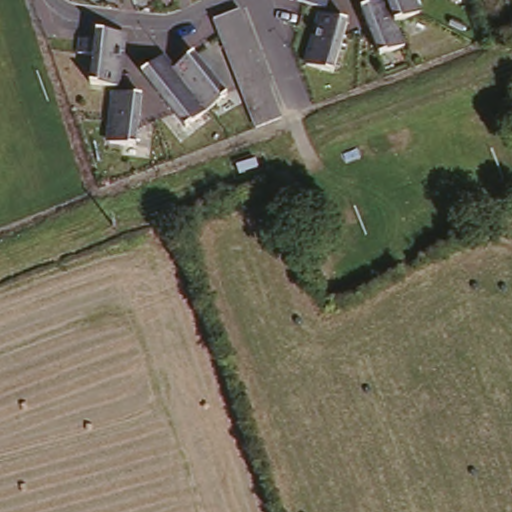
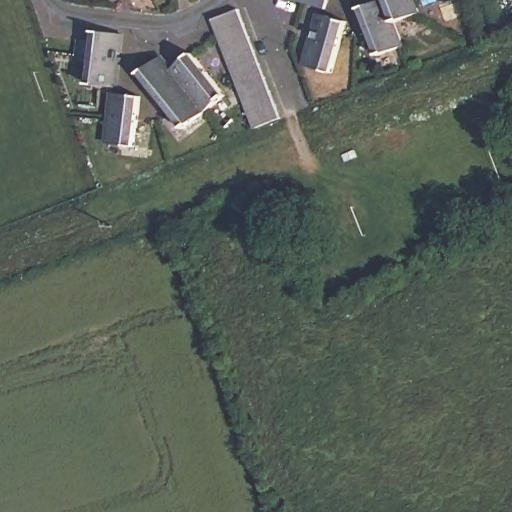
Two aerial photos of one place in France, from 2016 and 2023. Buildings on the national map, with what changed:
unchanged [(326,4),(309,0),(326,0),(326,4)]
unchanged [(422,13),(397,23),(407,46),(382,56),(364,9),(388,0),(417,0),(422,13)]
unchanged [(250,125),(210,16),(235,7),(276,115),(250,125)]
unchanged [(347,17),(333,68),(307,62),(321,10),(347,17)]
unchanged [(124,34),(119,86),(91,83),(94,56),(80,54),(82,39),(96,41),(96,31),(124,34)]
unchanged [(161,53),(170,65),(192,48),(226,92),(184,123),(140,69),(161,53)]
unchanged [(143,97),(137,146),(110,143),(116,93),(143,97)]

